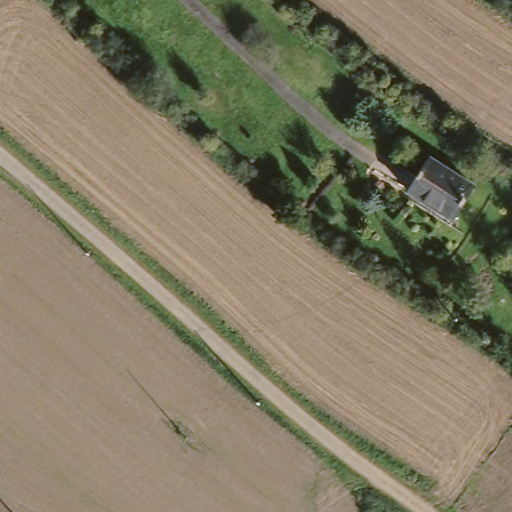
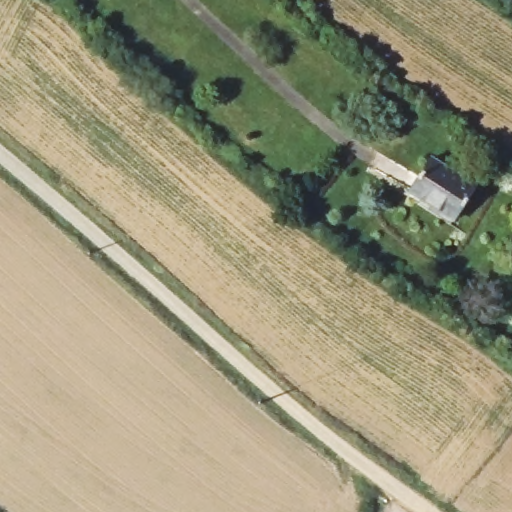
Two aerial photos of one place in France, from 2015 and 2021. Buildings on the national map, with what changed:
unchanged [(453,217),(409,191),(430,156),(474,184),(453,217)]

